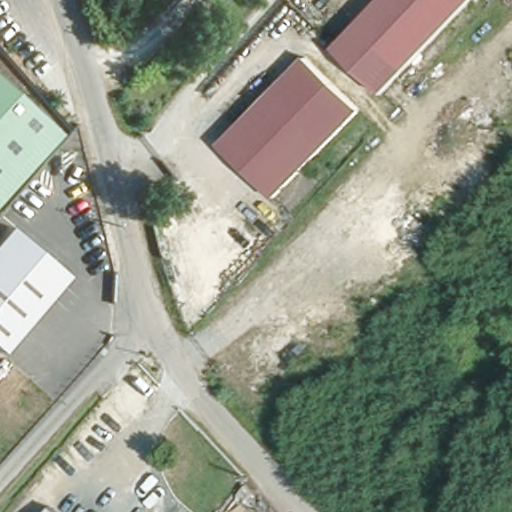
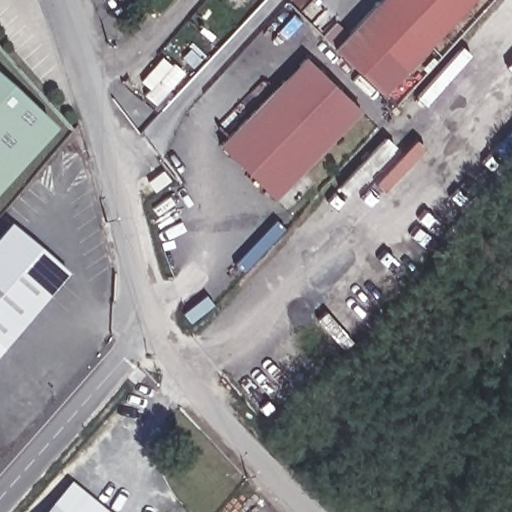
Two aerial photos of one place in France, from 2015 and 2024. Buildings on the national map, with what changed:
unchanged [(380,0),(471,0),(383,94),(335,48),(380,0)]
unchanged [(273,194),(222,144),(307,54),(360,104),(273,194)]
unchanged [(0,86),(52,131),(0,189),(0,86)]
unchanged [(6,353),(0,347),(0,244),(16,226),(72,276),(6,353)]
new [(105,512),(59,512),(52,507),(70,483),(105,512)]
unchanged [(52,507),(59,512),(47,512),(52,507)]

